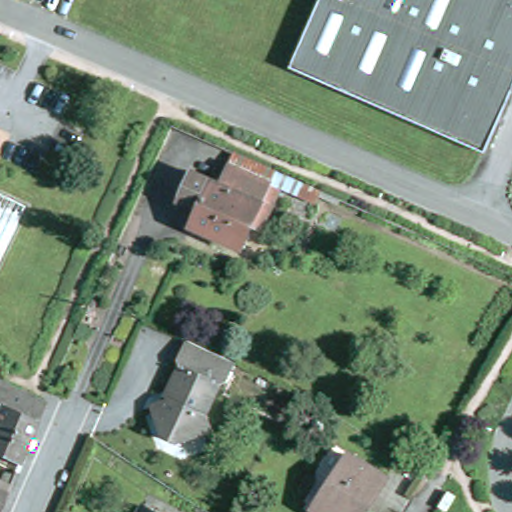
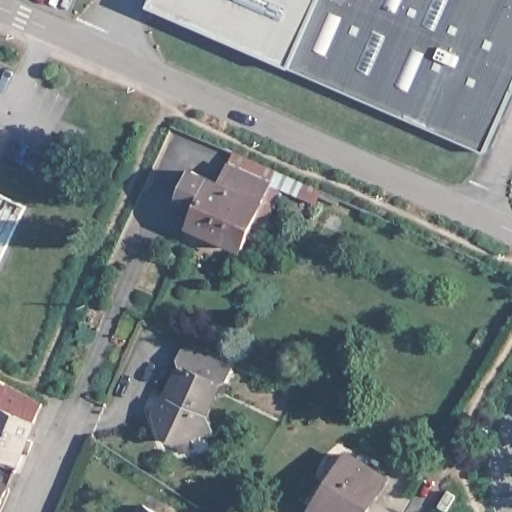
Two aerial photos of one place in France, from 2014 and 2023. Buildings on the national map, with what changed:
new [(152,5),(154,0),(329,0),(297,76),(152,5)]
unchanged [(494,162),(297,76),(329,0),(512,0),(512,117),(494,162)]
unchanged [(322,194),(316,207),(280,191),(260,236),(250,231),(239,253),(189,229),(196,212),(190,210),(182,191),(191,173),(216,185),(218,181),(222,182),(234,155),(322,194)]
unchanged [(0,275),(0,192),(32,208),(0,275)]
unchanged [(241,366),(232,385),(222,387),(206,419),(212,433),(178,447),(168,441),(157,409),(175,403),(177,398),(172,395),(184,370),(182,362),(192,342),(241,366)]
unchanged [(42,408),(18,468),(0,460),(0,381),(36,404),(42,408)]
unchanged [(392,484),(375,512),(321,512),(355,458),(392,484)]
unchanged [(10,512),(0,512),(0,489),(16,496),(10,512)]
unchanged [(155,512),(143,512),(146,507),(155,512)]

